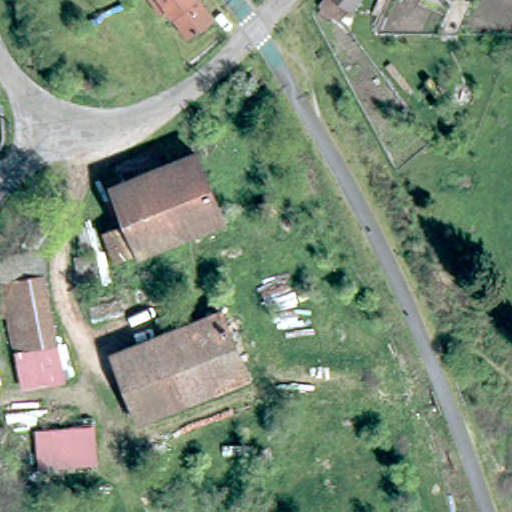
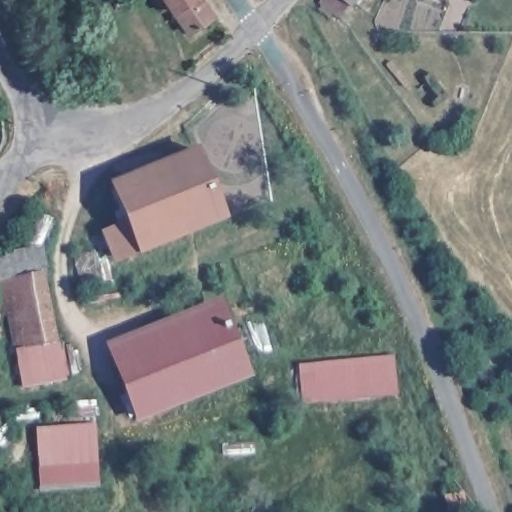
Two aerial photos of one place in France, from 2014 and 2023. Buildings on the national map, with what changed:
unchanged [(208,11),(185,28),(184,29),(164,1),(157,6),(153,0),(200,0),(208,11)]
unchanged [(345,11),(331,0),(353,0),(345,11)]
unchanged [(128,210),(114,176),(191,142),(195,150),(220,206),(187,221),(146,240),(142,241),(118,252),(106,220),(128,210)]
unchanged [(0,288),(0,254),(42,246),(66,383),(19,390),(0,288)]
unchanged [(134,415),(117,372),(126,368),(120,351),(219,308),(244,365),(134,415)]
new [(399,394),(301,404),(297,365),(395,355),(399,394)]
unchanged [(95,426),(99,466),(39,470),(35,430),(95,426)]

